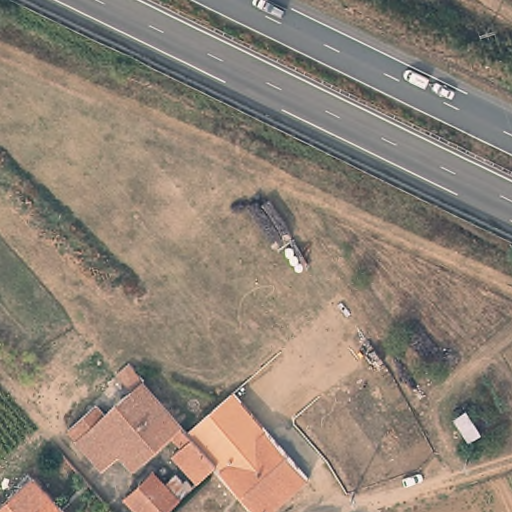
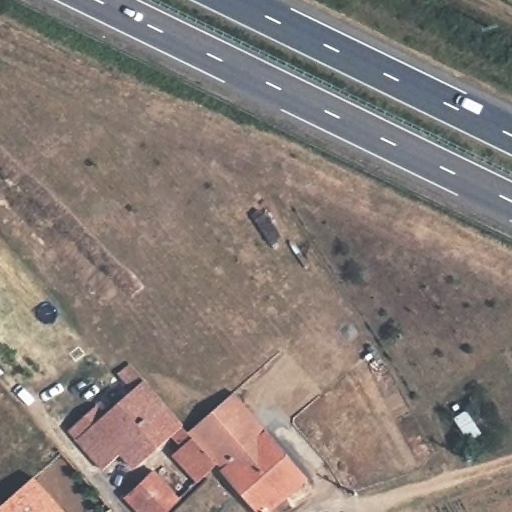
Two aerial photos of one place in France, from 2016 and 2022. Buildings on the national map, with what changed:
unchanged [(67,429),(97,403),(106,411),(131,389),(117,373),(131,362),(145,377),(144,378),(177,416),(219,462),(201,479),(175,452),(183,444),(173,433),(134,467),(121,453),(103,469),(67,430),(67,429)]
unchanged [(234,391),(254,414),(221,444),(233,458),(222,468),(219,462),(190,429),(234,391)]
unchanged [(309,478),(271,512),(259,512),(222,468),(233,458),(221,444),(254,414),(309,478)]
unchanged [(154,468),(166,481),(178,471),(192,486),(162,512),(142,512),(126,494),(154,468)]
unchanged [(37,474),(70,512),(0,512),(0,506),(37,474)]

